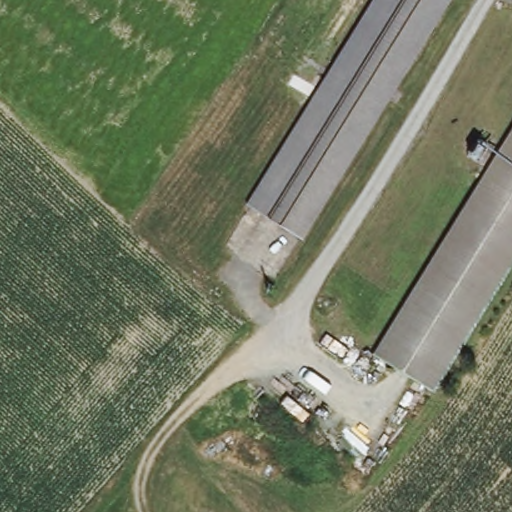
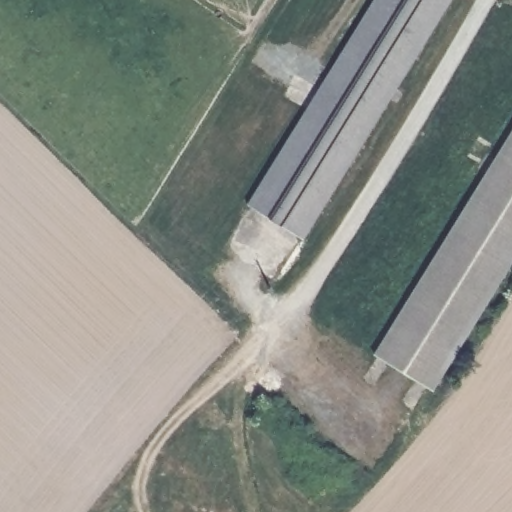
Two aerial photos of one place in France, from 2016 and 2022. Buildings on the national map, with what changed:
unchanged [(378,0),(454,0),(304,223),(250,188),(348,44),(378,0)]
unchanged [(512,146),(512,235),(407,390),(366,361),(512,146)]

